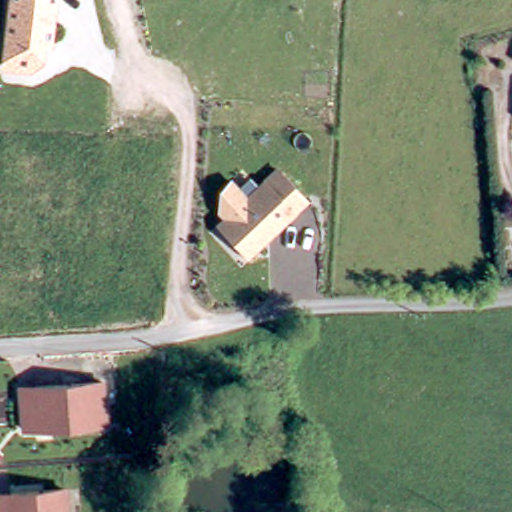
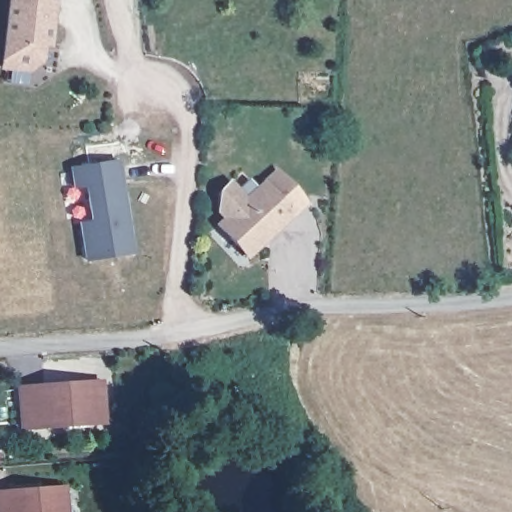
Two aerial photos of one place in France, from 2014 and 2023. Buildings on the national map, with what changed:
unchanged [(50,51),(42,63),(32,70),(26,72),(9,70),(0,61),(0,48),(6,0),(57,0),(53,46),(50,51)]
new [(73,167),(119,161),(131,251),(86,259),(81,223),(92,223),(87,185),(75,185),(73,167)]
unchanged [(234,246),(216,227),(274,171),(303,202),(273,231),(266,237),(252,251),(245,257),(234,246)]
unchanged [(88,422),(20,427),(17,387),(100,381),(101,400),(103,421),(88,422)]
unchanged [(64,512),(0,512),(0,491),(61,487),(64,512)]

